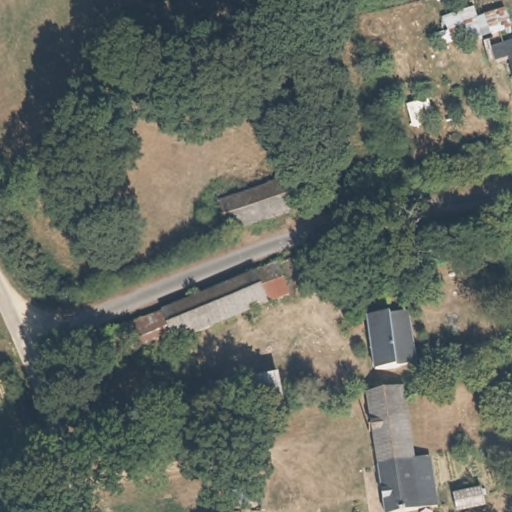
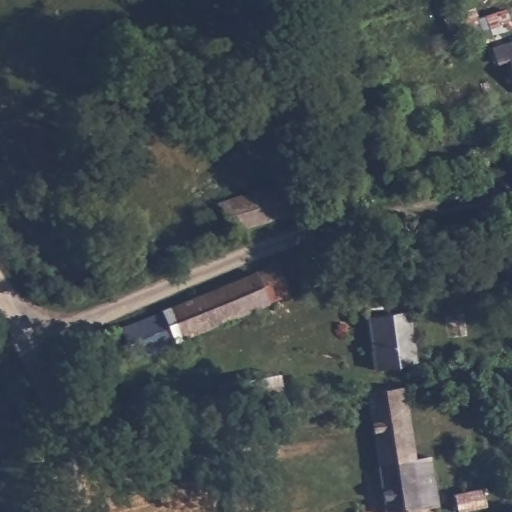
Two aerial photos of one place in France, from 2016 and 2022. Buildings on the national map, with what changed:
unchanged [(491,43),(512,37),(512,92),(508,94),(491,43)]
unchanged [(461,184),(430,194),(428,188),(422,164),(455,156),(461,184)]
unchanged [(292,176),(301,204),(231,228),(221,199),(292,176)]
unchanged [(269,262),(283,297),(169,345),(155,315),(154,310),(269,262)]
unchanged [(411,313),(420,363),(407,365),(378,370),(369,320),(411,313)]
unchanged [(169,345),(128,362),(114,331),(155,315),(169,345)]
unchanged [(288,407),(222,420),(214,385),(281,372),(288,407)]
unchanged [(364,393),(401,385),(415,453),(376,461),(364,393)]
unchanged [(376,461),(415,453),(430,451),(440,493),(442,504),(403,512),(387,512),(376,461)]
unchanged [(228,505),(229,486),(257,486),(260,505),(228,505)]
unchanged [(488,508),(468,512),(458,512),(453,492),(483,486),(488,508)]

